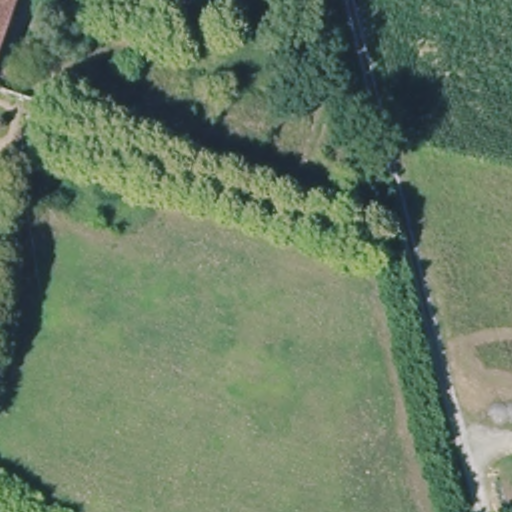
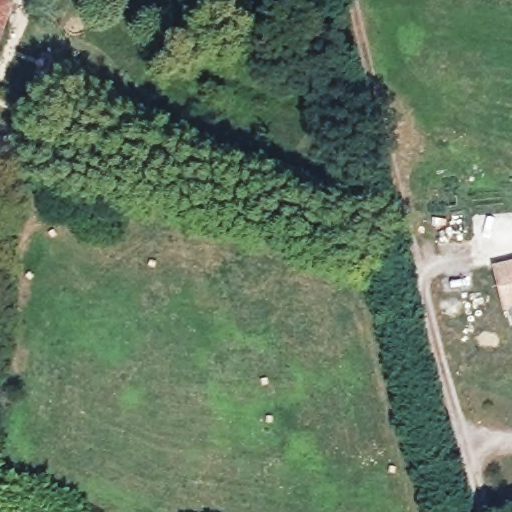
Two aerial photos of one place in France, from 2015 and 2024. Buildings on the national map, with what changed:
unchanged [(0,58),(0,4),(18,10),(0,58)]
new [(509,310),(505,311),(492,265),(512,260),(512,320),(509,310)]

